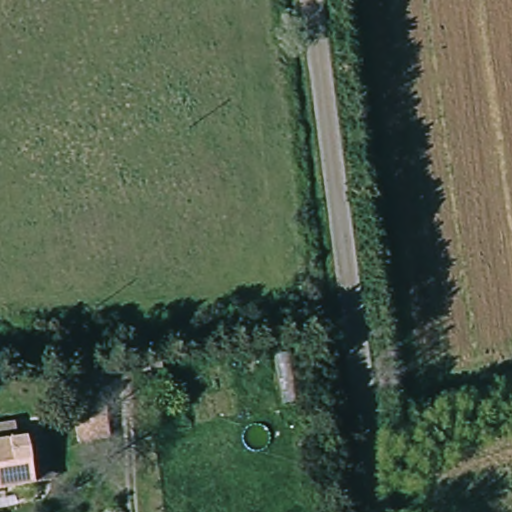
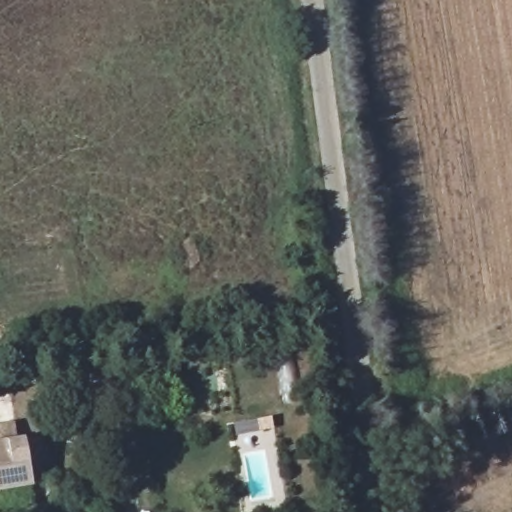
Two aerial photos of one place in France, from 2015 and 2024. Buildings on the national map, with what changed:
unchanged [(96,418),(99,441),(72,445),(68,422),(96,418)]
unchanged [(431,440),(414,443),(412,431),(429,427),(431,440)]
unchanged [(36,488),(0,490),(0,445),(33,444),(36,488)]

